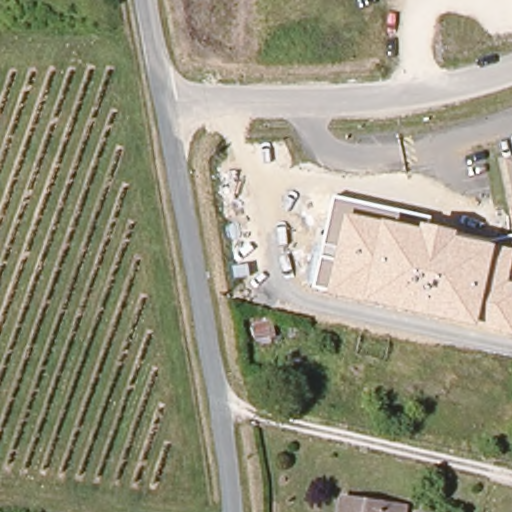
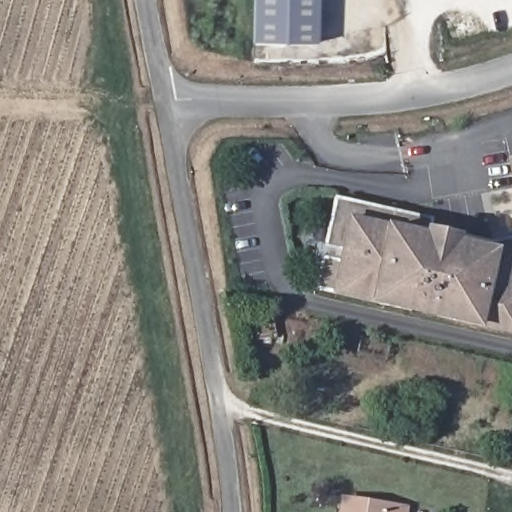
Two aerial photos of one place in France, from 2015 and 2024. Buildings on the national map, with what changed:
new [(319,0),(317,42),(252,41),(254,0),(319,0)]
unchanged [(507,160),(512,159),(512,183),(507,160)]
unchanged [(511,285),(512,285),(512,336),(480,330),(367,303),(330,293),(314,289),(334,198),(432,219),(430,228),(460,235),(490,240),(507,231),(512,251),(512,282),(511,285)]
unchanged [(507,231),(512,231),(512,251),(507,231)]
unchanged [(339,501),(375,507),(376,500),(396,504),(395,512),(337,512),(339,501)]

